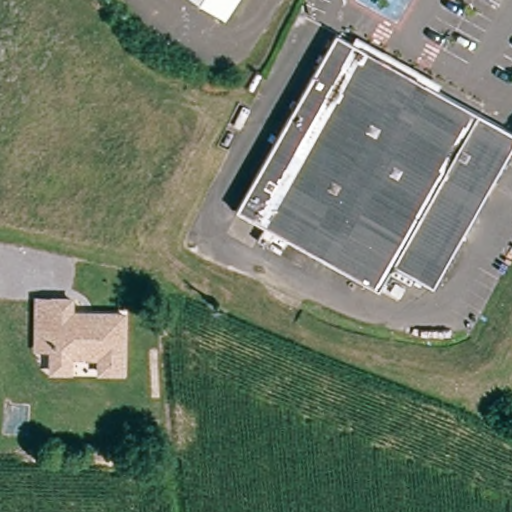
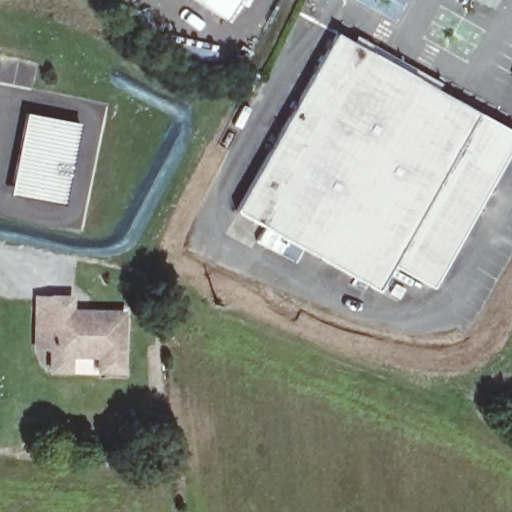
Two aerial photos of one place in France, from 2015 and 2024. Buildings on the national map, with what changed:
unchanged [(229,16),(206,0),(240,0),(229,16)]
unchanged [(425,205),(286,127),(340,34),(477,113),(425,205)]
new [(34,111),(85,122),(70,200),(23,191),(26,179),(20,178),(34,111)]
unchanged [(512,133),(512,163),(438,287),(394,261),(425,205),(477,113),(512,133)]
unchanged [(394,261),(378,291),(238,210),(286,127),(425,205),(394,261)]
unchanged [(55,353),(55,345),(40,345),(39,295),(54,295),(73,295),(73,309),(87,309),(93,309),(125,308),(126,367),(103,367),(103,352),(74,352),(74,368),(55,368),(55,353)]

